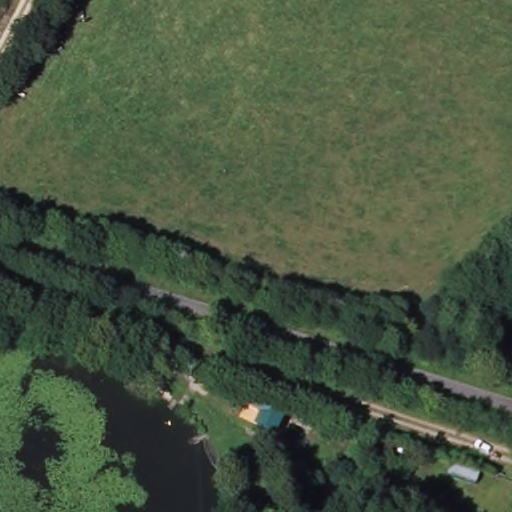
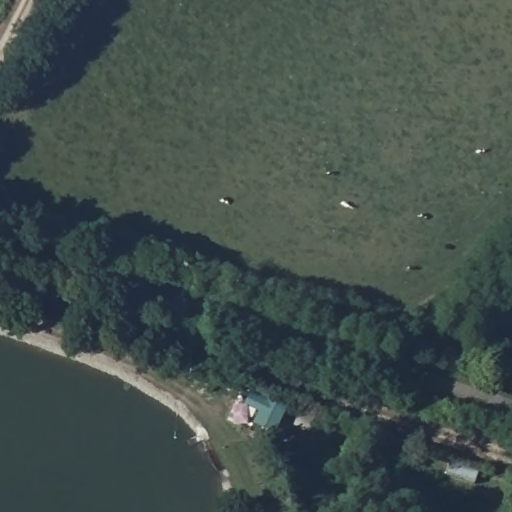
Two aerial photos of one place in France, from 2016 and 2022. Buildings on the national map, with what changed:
unchanged [(239,424),(253,393),(287,410),(277,439),(239,424)]

